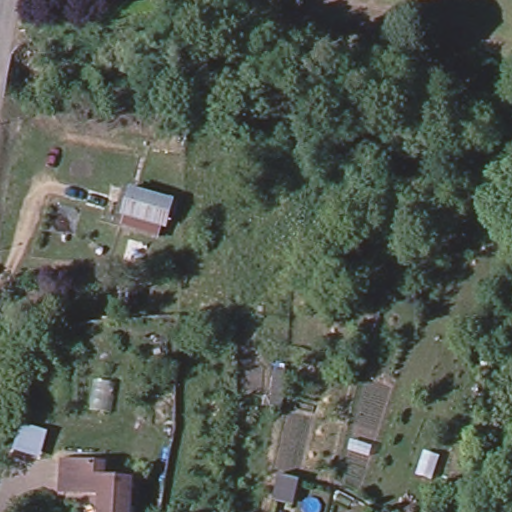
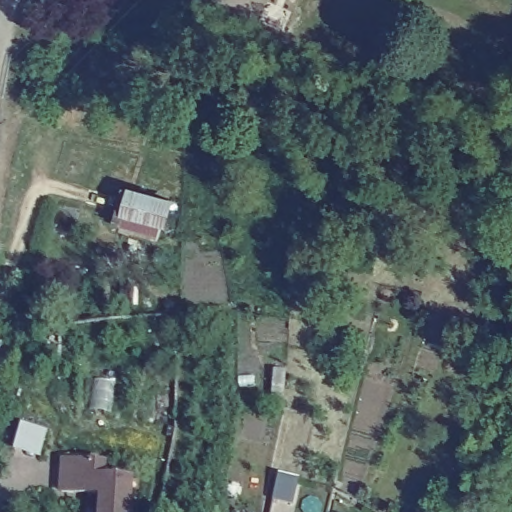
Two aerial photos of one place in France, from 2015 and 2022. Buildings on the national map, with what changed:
unchanged [(162,199),(162,222),(128,222),(128,199),(162,199)]
unchanged [(282,377),(279,413),(268,412),(271,376),(282,377)]
unchanged [(67,468),(107,471),(106,485),(133,487),(132,512),(103,512),(104,502),(65,498),(67,468)]

